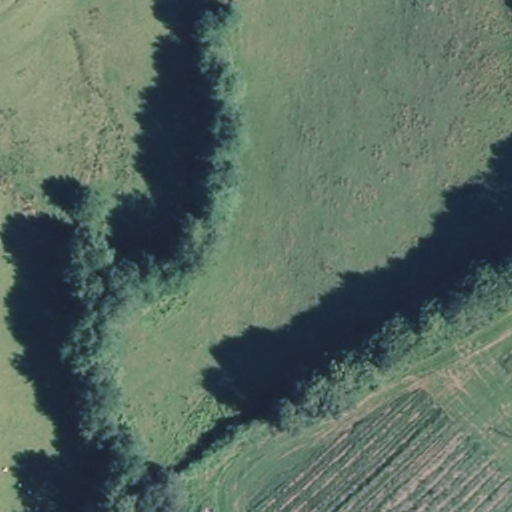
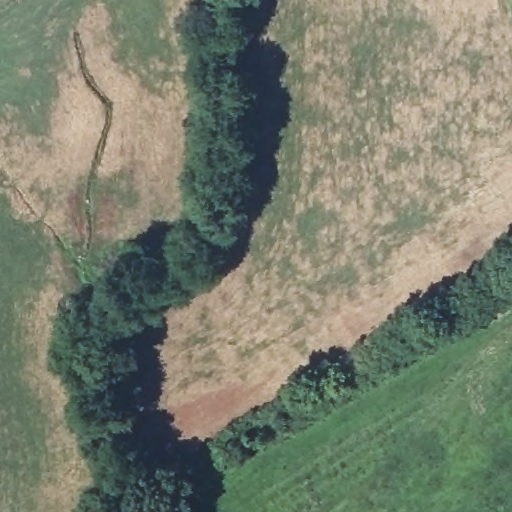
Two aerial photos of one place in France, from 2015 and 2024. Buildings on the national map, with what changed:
[]

